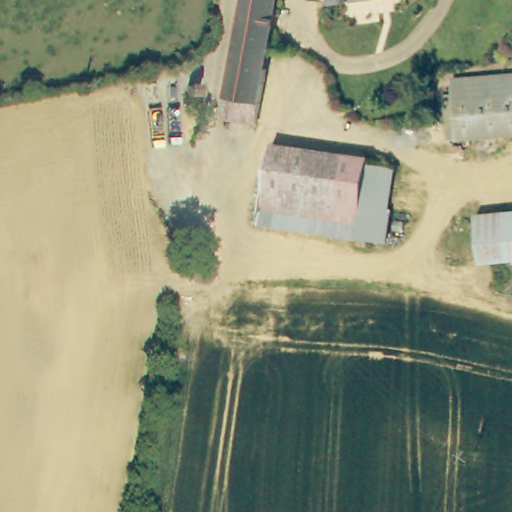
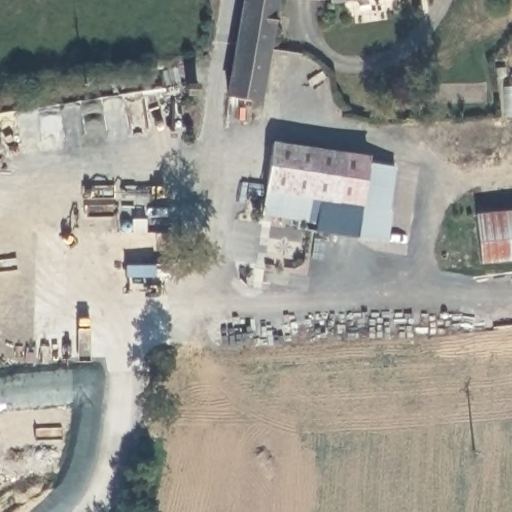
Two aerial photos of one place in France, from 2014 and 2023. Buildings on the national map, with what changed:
unchanged [(251,0),(281,0),(272,52),(242,46),(251,0)]
unchanged [(333,2),(332,0),(345,0),(333,2)]
unchanged [(272,52),(258,125),(228,118),(242,46),(272,52)]
demolished [(512,72),(512,135),(511,135),(507,73),(512,72)]
demolished [(448,139),(445,93),(451,92),(451,77),(507,73),(511,135),(448,139)]
unchanged [(198,95),(187,96),(186,85),(198,85),(198,95)]
unchanged [(360,227),(263,216),(273,145),(367,155),(367,162),(360,227)]
unchanged [(367,162),(395,165),(390,206),(393,207),(388,241),(358,236),(360,227),(367,162)]
unchanged [(486,261),(481,215),(512,211),(512,262),(486,265),(486,261)]
unchanged [(360,227),(358,236),(357,241),(261,229),(263,216),(360,227)]

